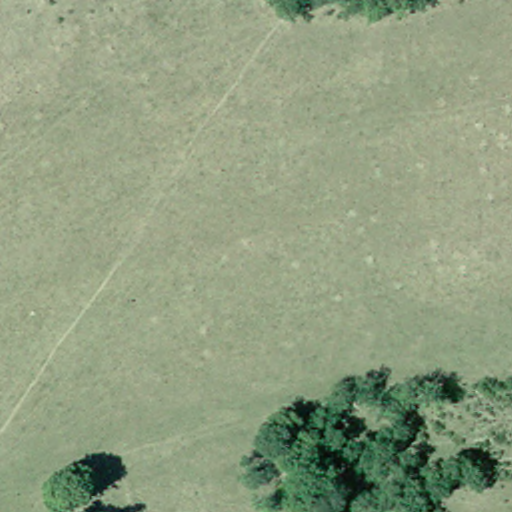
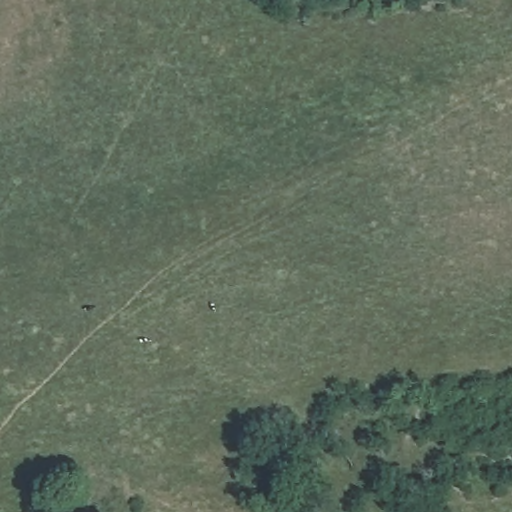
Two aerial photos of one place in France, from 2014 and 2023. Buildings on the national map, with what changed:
[]

